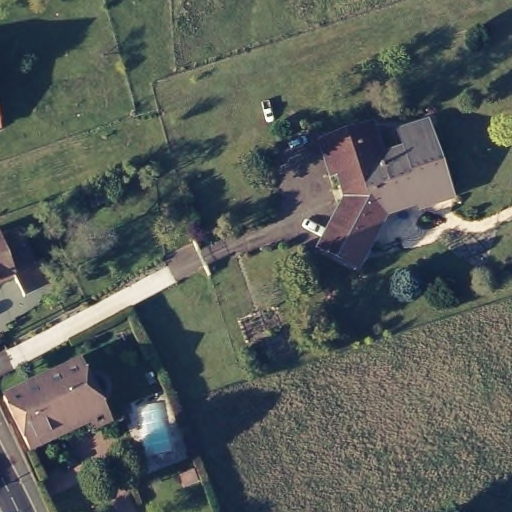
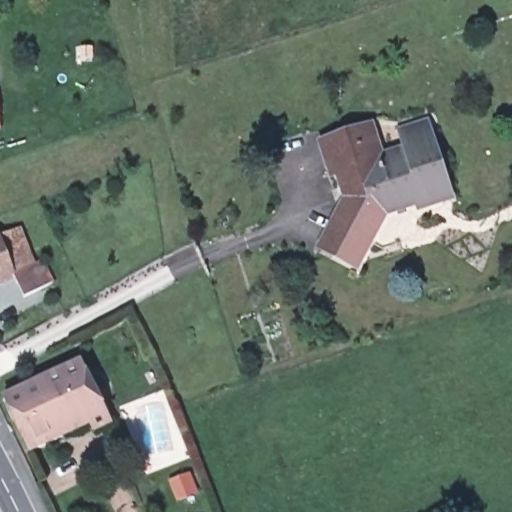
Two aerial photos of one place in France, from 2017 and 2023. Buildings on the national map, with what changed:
unchanged [(446,192),(415,202),(413,197),(380,208),(352,262),(316,243),(342,194),(334,167),(329,169),(318,137),(366,121),(377,152),(402,144),(396,127),(422,118),(446,192)]
unchanged [(110,199),(91,208),(86,197),(105,188),(110,199)]
unchanged [(11,230),(24,265),(32,260),(43,281),(14,295),(4,275),(0,277),(0,234),(11,230)]
unchanged [(112,417),(95,425),(91,418),(85,408),(60,419),(65,430),(31,446),(5,393),(82,356),(112,417)]

